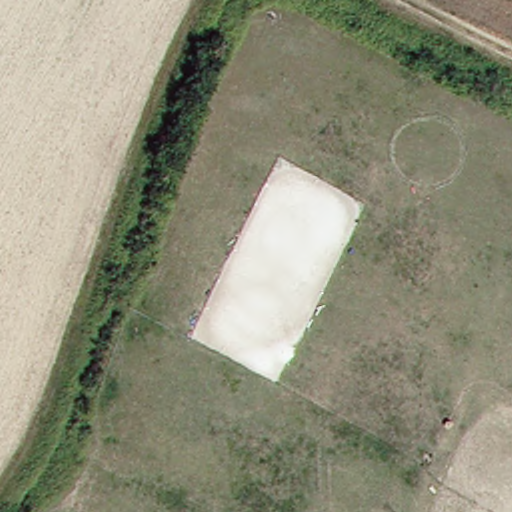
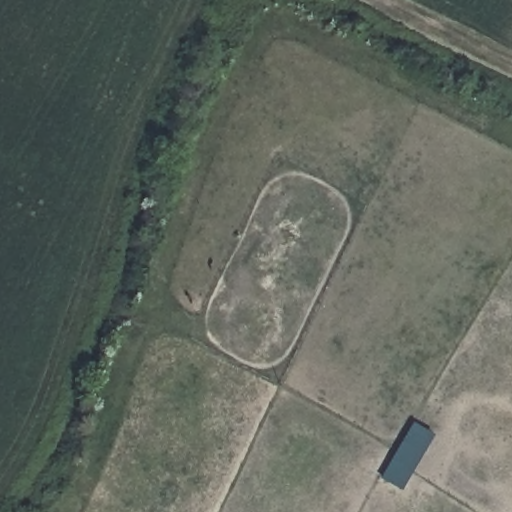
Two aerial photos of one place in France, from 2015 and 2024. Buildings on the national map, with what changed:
new [(411,423),(434,435),(401,490),(379,478),(411,423)]

